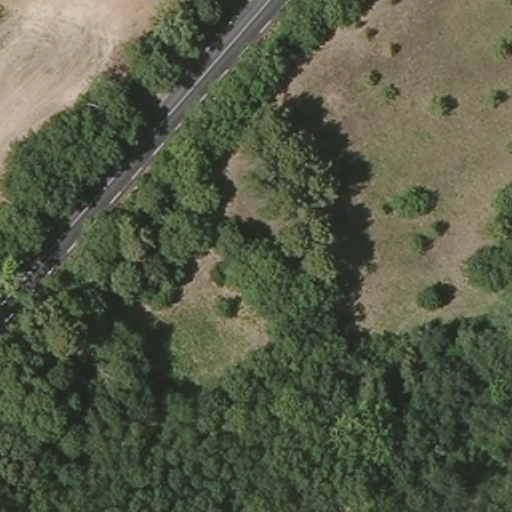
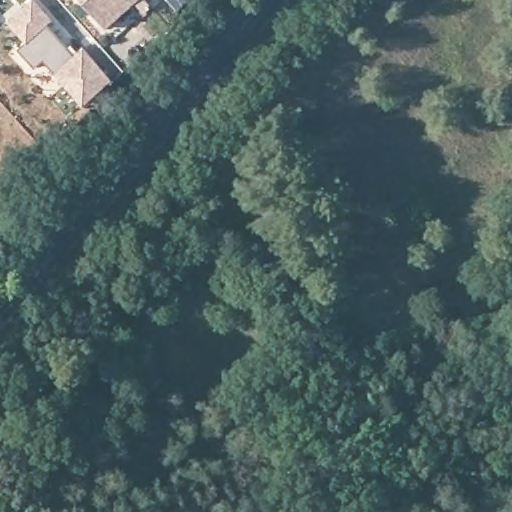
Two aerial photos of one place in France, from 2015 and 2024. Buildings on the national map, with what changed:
new [(82,104),(52,71),(42,59),(32,67),(15,48),(25,41),(7,20),(28,0),(33,0),(50,20),(45,25),(72,55),(82,46),(112,79),(82,104)]
new [(100,29),(74,0),(133,0),(100,29)]
new [(172,9),(164,0),(182,0),(172,9)]

